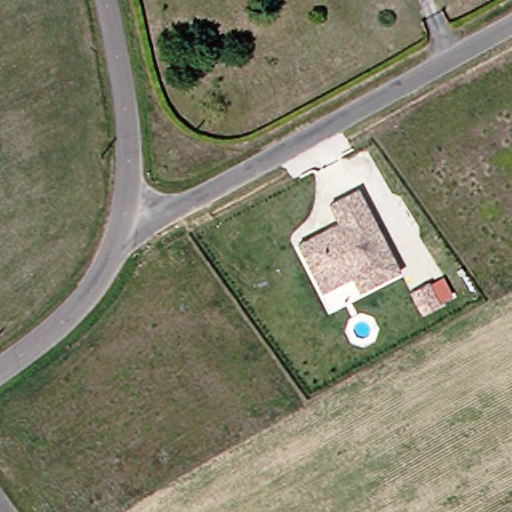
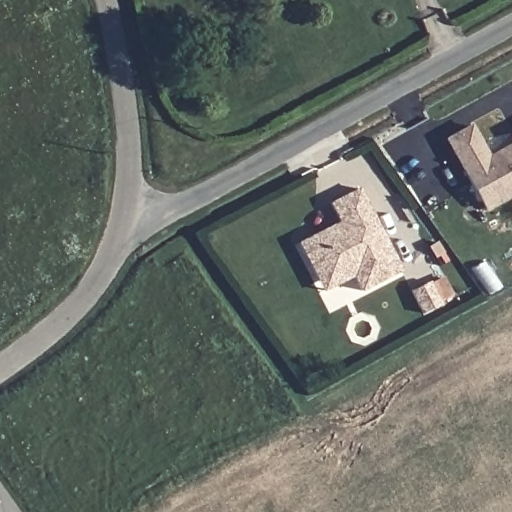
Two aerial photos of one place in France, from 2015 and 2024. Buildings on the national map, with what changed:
new [(467,129),(485,160),(512,145),(512,195),(482,211),(444,142),(467,129)]
unchanged [(317,279),(298,243),(339,221),(329,202),(357,187),(400,268),(361,289),(353,274),(324,290),(317,279)]
new [(432,281),(444,304),(426,313),(415,290),(432,281)]

